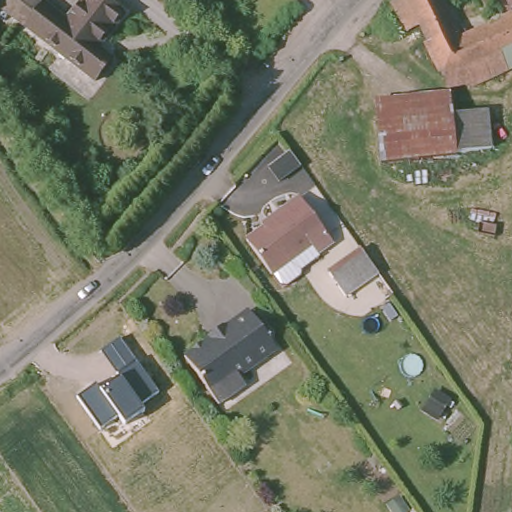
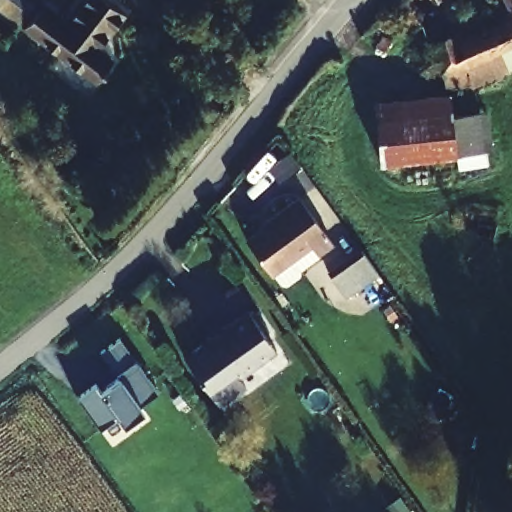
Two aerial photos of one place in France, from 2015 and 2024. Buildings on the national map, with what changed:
unchanged [(22,22),(0,3),(0,0),(33,0),(38,4),(22,22)]
unchanged [(99,53),(115,65),(98,83),(30,25),(43,7),(71,27),(93,0),(105,0),(127,19),(99,53)]
unchanged [(397,1),(398,0),(442,0),(456,31),(467,26),(472,35),(512,17),(512,50),(505,54),(512,68),(512,70),(489,81),(485,75),(452,87),(442,60),(426,25),(414,31),(397,1)]
unchanged [(449,103),(452,148),(375,158),(372,110),(449,103)]
unchanged [(489,108),(494,146),(452,148),(449,113),(489,108)]
unchanged [(302,200),(334,242),(320,252),(315,244),(276,273),(251,240),(277,222),(276,220),(302,200)]
unchanged [(381,272),(352,296),(334,274),(365,252),(381,272)]
unchanged [(250,309),(279,348),(241,377),(247,386),(220,404),(185,357),(197,346),(213,337),(216,340),(231,330),(227,327),(250,309)]
unchanged [(97,384),(102,392),(121,378),(103,353),(122,339),(161,392),(142,405),(144,409),(124,423),(119,417),(101,429),(77,398),(97,384)]

